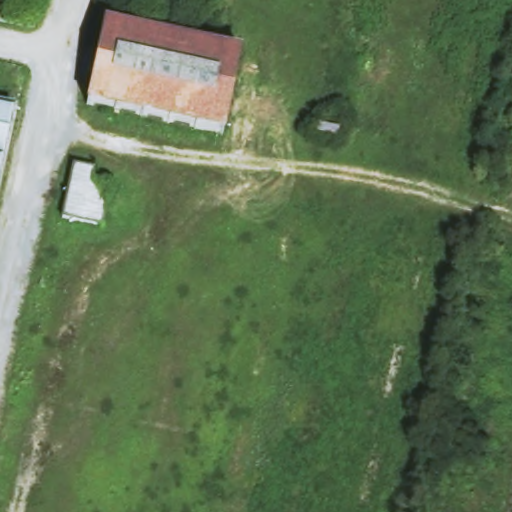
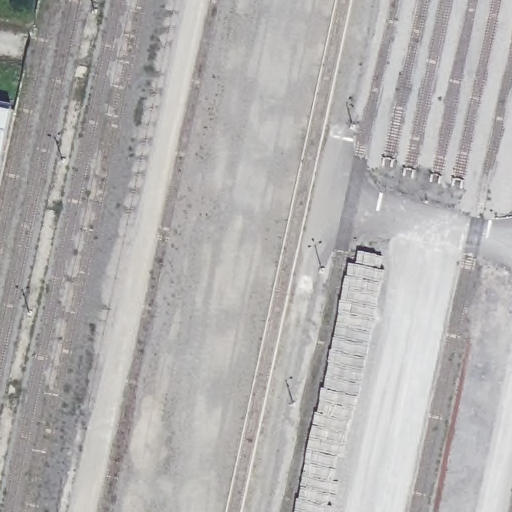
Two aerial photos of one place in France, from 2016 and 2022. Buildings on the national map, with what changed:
demolished [(193,43),(243,54),(224,137),(89,107),(106,25),(193,43)]
unchanged [(0,171),(0,110),(13,112),(0,171)]
demolished [(107,203),(103,225),(64,219),(74,167),(94,171),(93,185),(110,188),(107,203)]

